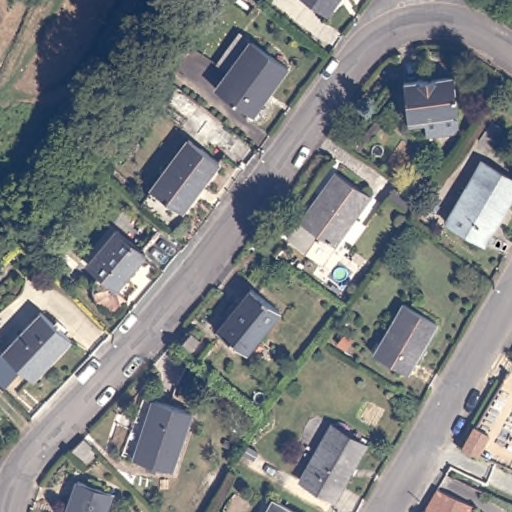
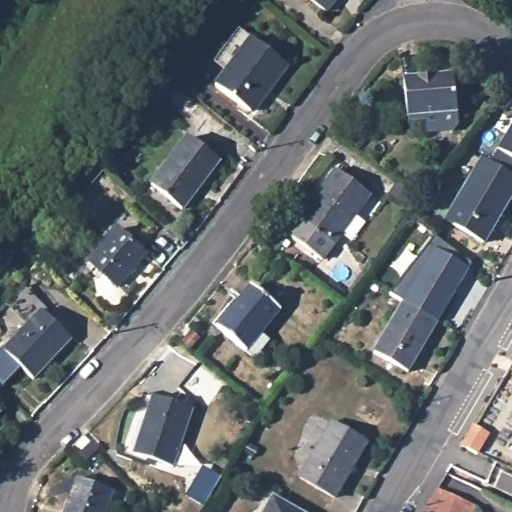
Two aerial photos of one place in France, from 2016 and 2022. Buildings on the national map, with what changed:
unchanged [(327,15),(308,0),(339,0),(327,15)]
unchanged [(274,87),(271,85),(250,112),(215,84),(230,67),(217,57),(241,29),(254,37),(289,68),(274,87)]
unchanged [(455,79),(460,133),(436,136),(435,128),(413,130),(407,85),(455,79)]
new [(175,88),(199,107),(187,121),(164,103),(175,88)]
unchanged [(191,141),(221,163),(189,205),(182,202),(177,207),(170,202),(174,196),(157,185),(191,141)]
unchanged [(482,160),(512,178),(512,200),(485,243),(447,219),(482,160)]
unchanged [(339,167),(373,192),(327,259),(292,235),(339,167)]
new [(397,183),(423,201),(413,215),(387,196),(397,183)]
unchanged [(121,230),(148,255),(119,286),(91,262),(121,230)]
new [(470,266),(437,321),(404,302),(390,295),(433,237),(470,266)]
unchanged [(255,286),(283,307),(250,352),(224,330),(255,286)]
unchanged [(404,302),(437,321),(409,371),(375,351),(404,302)]
unchanged [(72,341),(34,380),(21,369),(5,384),(0,379),(0,360),(44,313),(72,341)]
unchanged [(150,396),(190,408),(171,470),(131,457),(150,396)]
unchanged [(0,417),(0,410),(4,413),(0,417)]
unchanged [(332,425),(367,445),(337,498),(303,480),(332,425)]
unchanged [(116,487),(108,512),(69,512),(80,477),(116,487)]
unchanged [(426,512),(435,491),(477,507),(475,512),(426,512)]
unchanged [(308,512),(265,512),(273,496),(308,512)]

